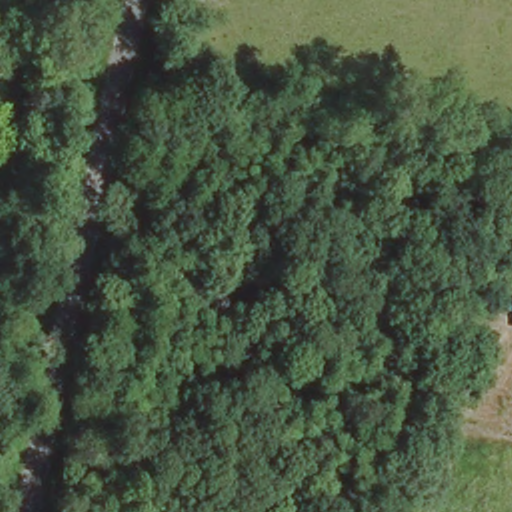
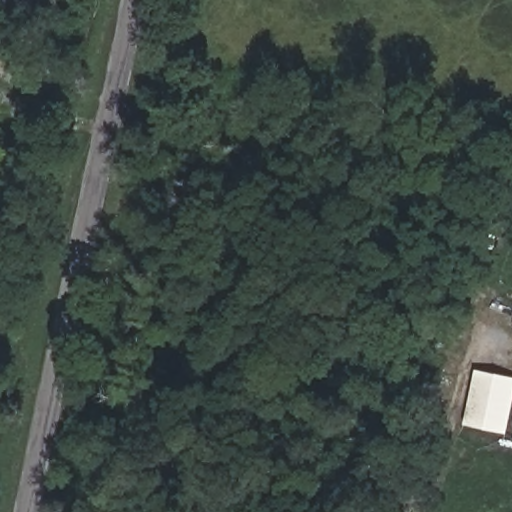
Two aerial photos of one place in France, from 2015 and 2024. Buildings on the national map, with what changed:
new [(512,378),(512,409),(507,436),(464,425),(475,370),(512,378)]

